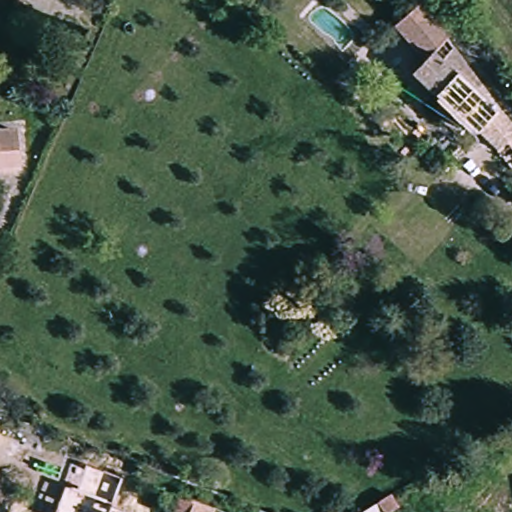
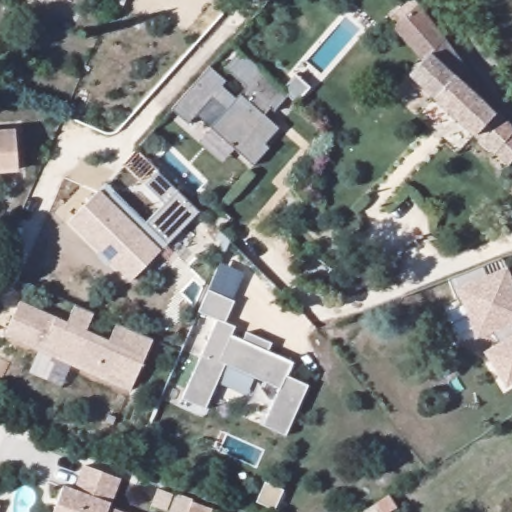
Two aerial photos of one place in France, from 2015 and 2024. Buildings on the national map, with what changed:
unchanged [(446,49),(419,68),(390,32),(419,11),(446,49)]
unchanged [(405,78),(419,68),(446,49),(499,123),(470,143),(405,78)]
new [(297,104),(289,97),(273,114),(271,112),(265,118),(279,130),(265,146),(269,149),(253,167),(211,130),(227,112),(211,98),(188,127),(172,112),(211,69),(226,82),(222,87),(237,99),(247,89),(226,70),(240,53),(284,90),(295,76),(311,89),(297,104)]
unchanged [(510,139),(512,142),(512,174),(505,179),(492,159),(489,162),(470,143),(499,123),(510,139)]
unchanged [(9,131),(11,171),(0,172),(0,131),(9,131)]
new [(131,282),(68,221),(105,182),(146,222),(164,204),(144,184),(157,171),(199,212),(131,282)]
unchanged [(325,264),(316,275),(308,267),(317,257),(325,264)]
new [(497,342),(492,332),(475,339),(459,299),(457,300),(450,280),(482,267),(486,276),(507,267),(511,277),(512,277),(512,326),(512,383),(505,387),(483,352),(497,342)]
new [(287,437),(264,428),(280,389),(225,366),(204,409),(185,401),(218,322),(200,315),(209,292),(234,302),(226,323),(235,327),(230,337),(291,363),(285,377),(308,387),(287,437)]
new [(15,303),(63,325),(72,303),(91,312),(82,331),(105,341),(114,322),(150,338),(126,391),(1,335),(15,303)]
new [(112,507),(123,512),(53,512),(62,485),(78,490),(84,466),(122,480),(112,507)]
new [(214,512),(170,512),(171,511),(154,506),(159,490),(194,501),(193,503),(215,510),(214,512)]
new [(390,496),(398,509),(392,512),(363,512),(390,496)]

